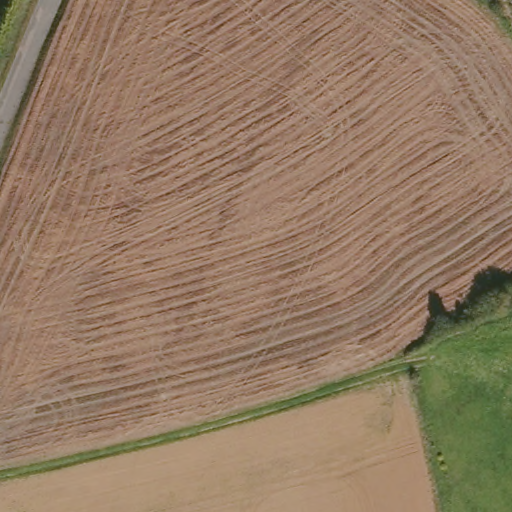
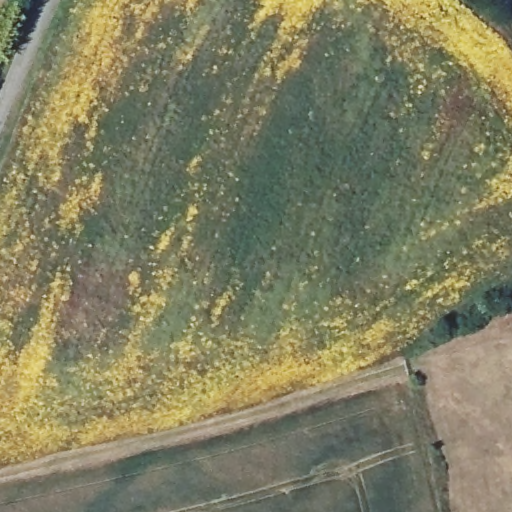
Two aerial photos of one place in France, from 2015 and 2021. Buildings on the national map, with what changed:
[]

